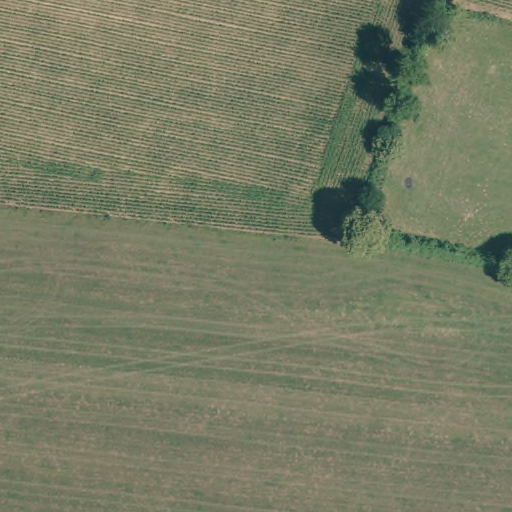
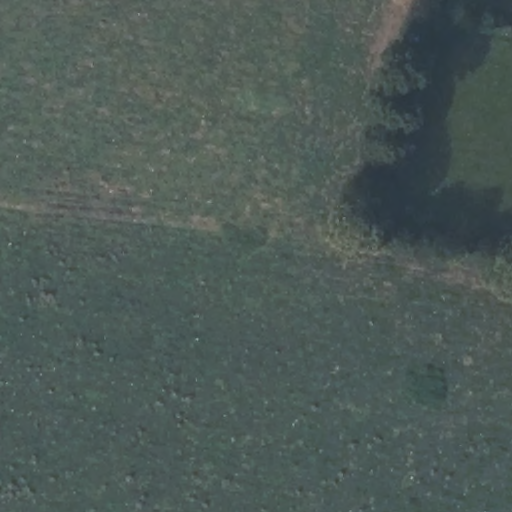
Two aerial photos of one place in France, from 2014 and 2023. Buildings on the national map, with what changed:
[]

